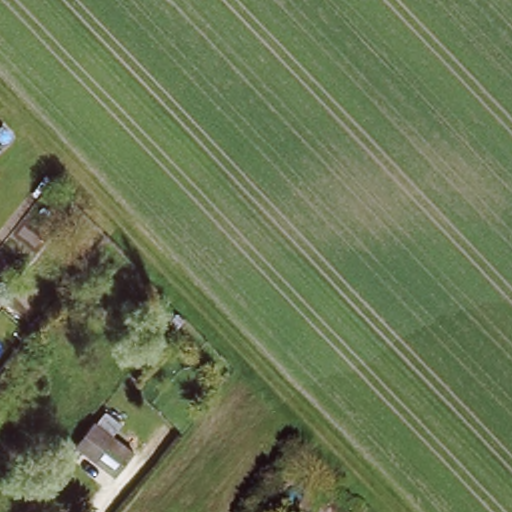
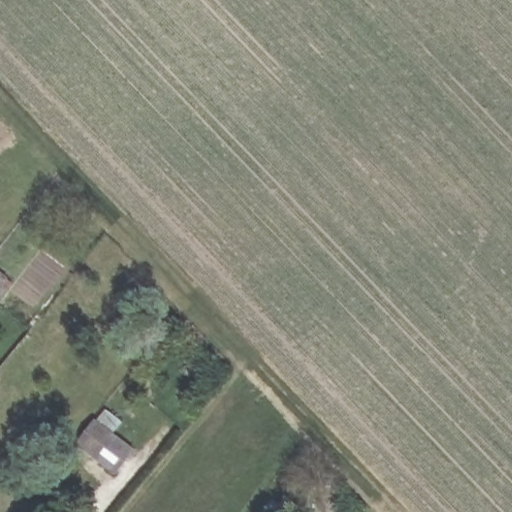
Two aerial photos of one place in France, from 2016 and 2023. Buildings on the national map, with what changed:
unchanged [(0,280),(0,270),(4,274),(0,280)]
unchanged [(0,309),(0,301),(3,304),(0,309)]
unchanged [(135,451),(114,479),(75,447),(96,420),(135,451)]

